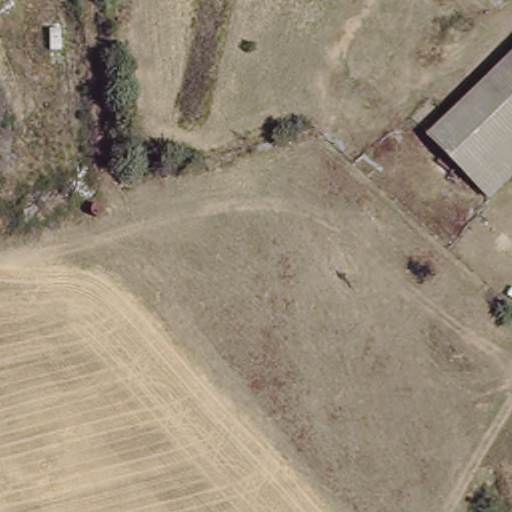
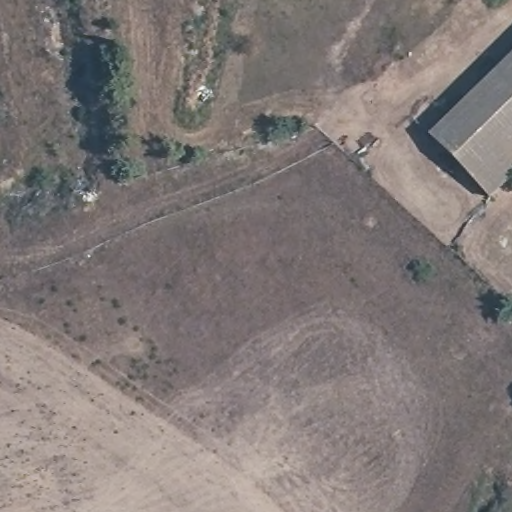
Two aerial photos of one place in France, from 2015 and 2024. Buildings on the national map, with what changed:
unchanged [(427,137),(512,55),(512,175),(486,199),(427,137)]

